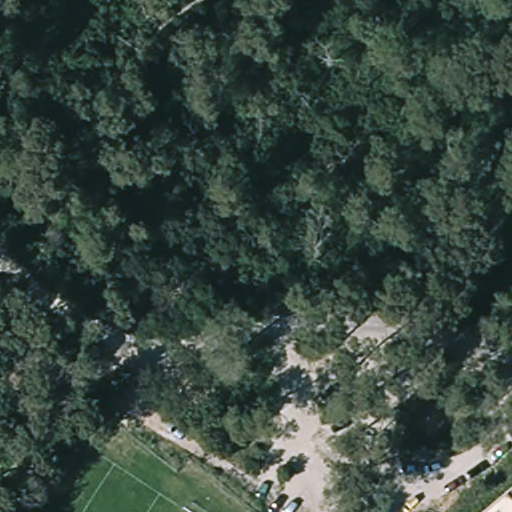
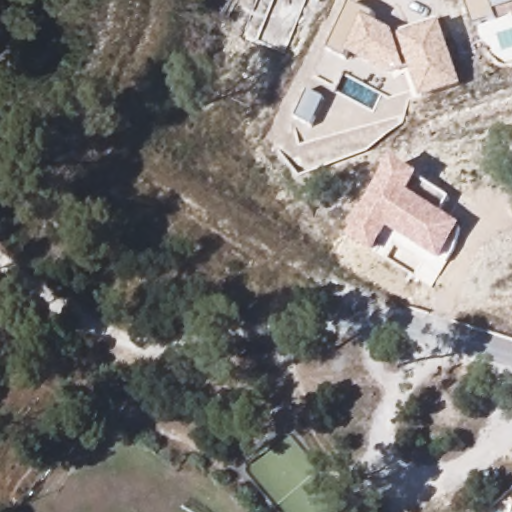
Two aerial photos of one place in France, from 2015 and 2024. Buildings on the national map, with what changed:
new [(240,31),(254,0),(304,0),(283,50),(240,31)]
new [(465,0),(512,0),(512,3),(493,9),(495,18),(473,24),(465,0)]
new [(387,74),(350,54),(347,59),(328,51),(352,3),(375,15),(373,21),(393,30),(396,38),(401,36),(400,30),(438,18),(441,25),(443,24),(461,84),(419,96),(409,65),(404,65),(405,69),(387,74)]
new [(390,231),(374,256),(349,240),(396,164),(422,180),(450,199),(439,213),(463,227),(440,262),(390,231)]

